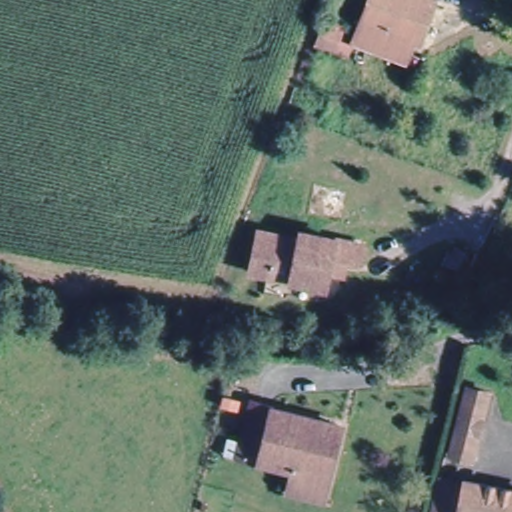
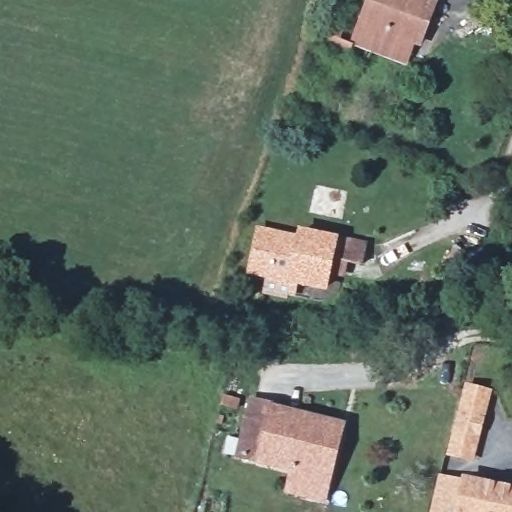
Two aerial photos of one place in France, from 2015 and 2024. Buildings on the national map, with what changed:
unchanged [(368,0),(426,0),(423,4),(432,9),(416,51),(407,50),(360,30),(356,29),(368,0)]
unchanged [(333,51),(315,46),(324,22),(341,26),(333,51)]
unchanged [(407,50),(400,72),(353,55),(360,30),(407,50)]
unchanged [(318,277),(314,294),(242,278),(250,235),(291,243),(293,235),(359,249),(352,270),(336,267),(333,280),(318,277)]
unchanged [(482,400),(466,462),(444,455),(462,395),(482,400)]
unchanged [(292,496),(297,476),(239,462),(253,410),(345,431),(331,482),(327,503),(292,496)]
unchanged [(464,487),(512,500),(512,512),(458,512),(464,487)]

